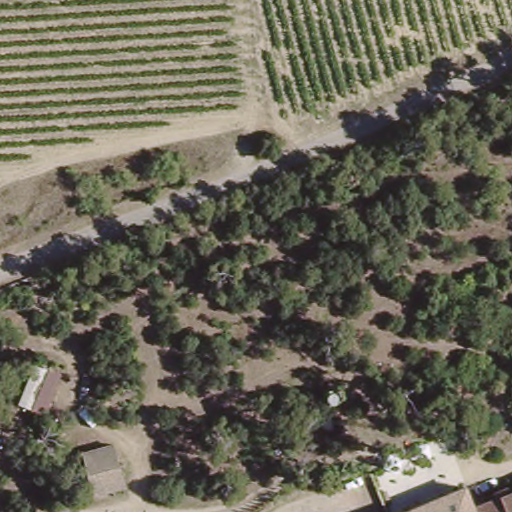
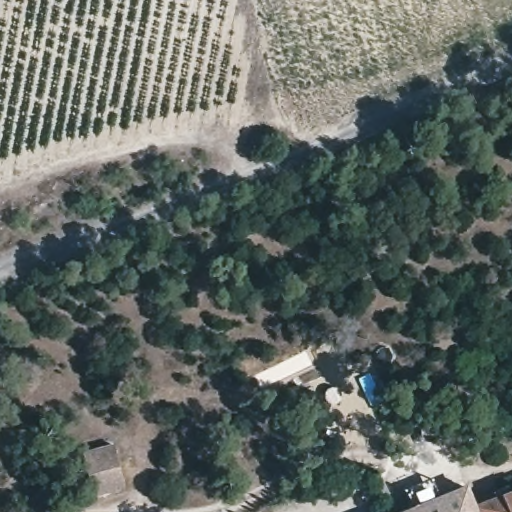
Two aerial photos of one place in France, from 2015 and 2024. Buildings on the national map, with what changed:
unchanged [(31,360),(47,367),(32,406),(15,400),(31,360)]
unchanged [(356,424),(348,427),(339,423),(337,414),(341,406),(347,404),(356,406),(360,412),(359,420),(356,424)]
unchanged [(122,490),(92,494),(82,455),(111,444),(122,490)]
unchanged [(466,499),(471,512),(386,512),(460,481),(466,499)]
unchanged [(471,512),(466,499),(512,481),(512,512),(471,512)]

